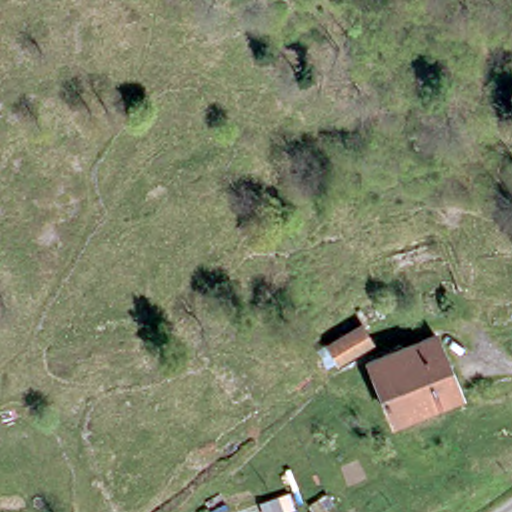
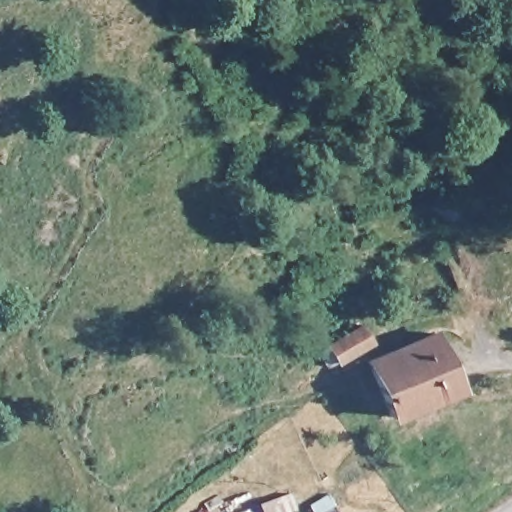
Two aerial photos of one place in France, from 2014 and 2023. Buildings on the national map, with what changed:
unchanged [(490,322),(490,300),(512,299),(512,322),(490,322)]
unchanged [(327,370),(318,354),(363,330),(371,344),(327,370)]
unchanged [(465,393),(397,420),(376,367),(444,340),(465,393)]

